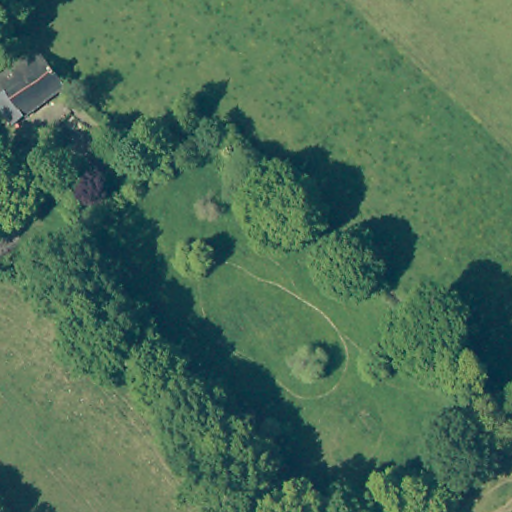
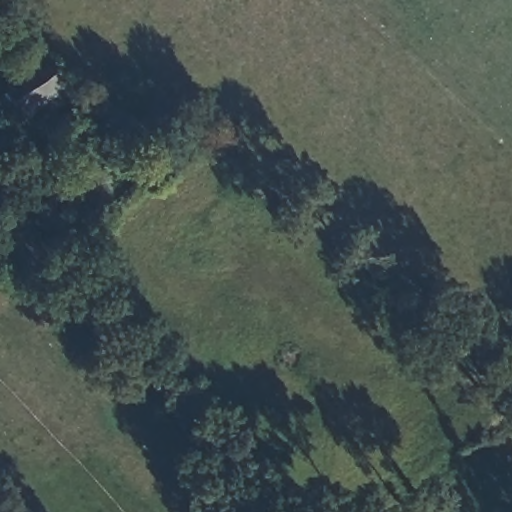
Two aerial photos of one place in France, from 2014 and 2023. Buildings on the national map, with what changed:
unchanged [(16,62),(34,50),(66,87),(17,124),(1,103),(0,102),(0,76),(16,62)]

